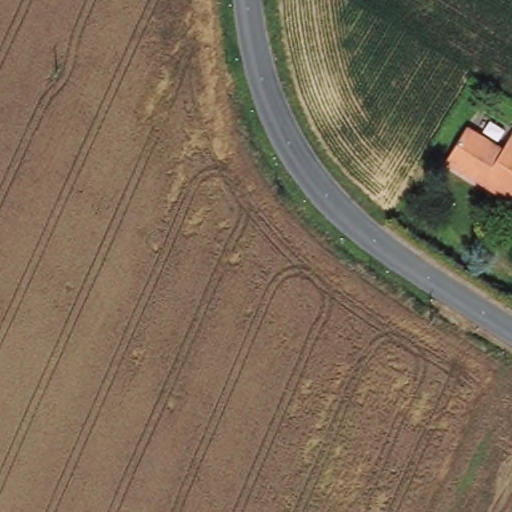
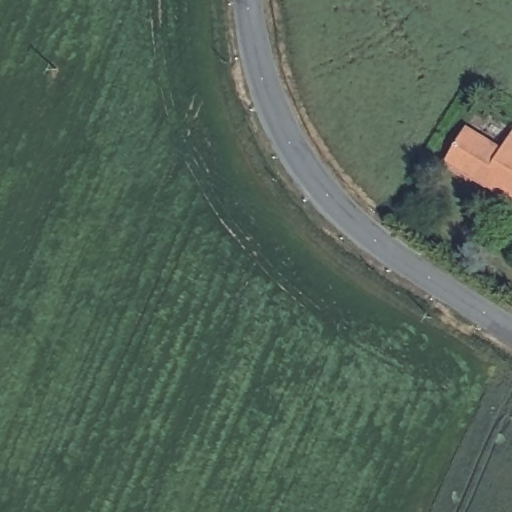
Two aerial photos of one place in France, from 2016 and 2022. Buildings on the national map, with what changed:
unchanged [(507,150),(512,142),(512,200),(452,162),(474,128),(507,150)]

